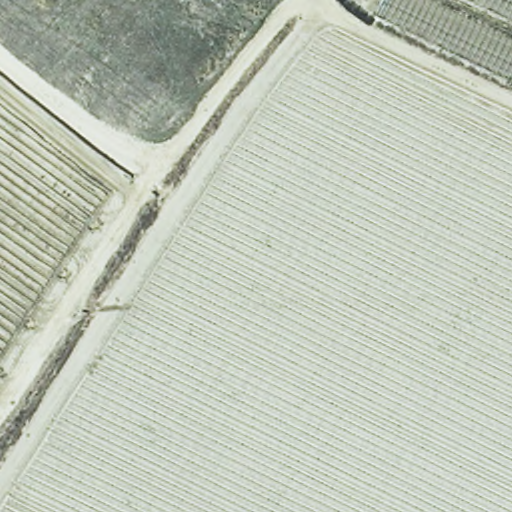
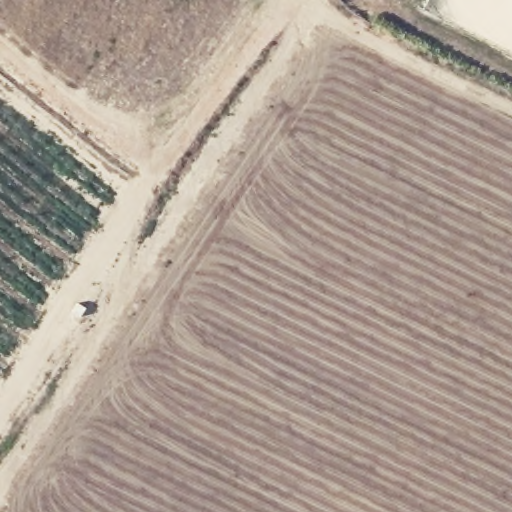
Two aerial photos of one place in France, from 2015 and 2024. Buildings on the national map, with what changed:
demolished [(382,0),(512,0),(512,85),(373,18),(382,0)]

